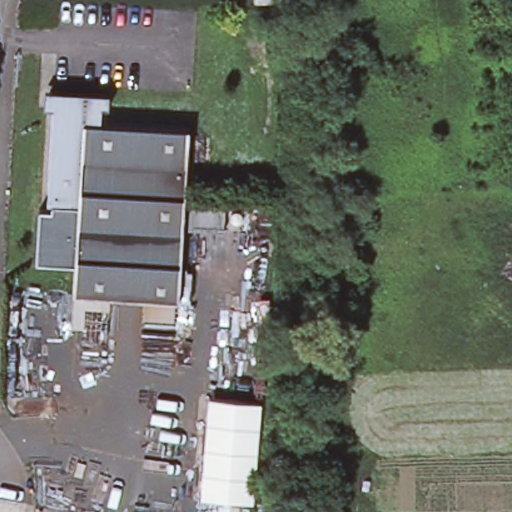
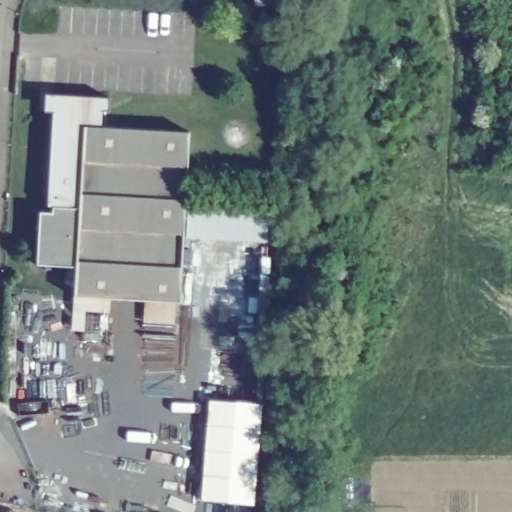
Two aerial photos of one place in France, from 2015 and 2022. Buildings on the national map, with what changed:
unchanged [(49,104),(49,102),(105,106),(103,129),(192,136),(180,308),(73,301),(79,212),(76,212),(48,209),(56,104),(49,104)]
unchanged [(227,210),(225,240),(190,237),(192,207),(227,210)]
unchanged [(76,212),(73,264),(35,264),(37,212),(46,212),(76,212)]
unchanged [(261,404),(252,501),(200,496),(209,398),(261,404)]

